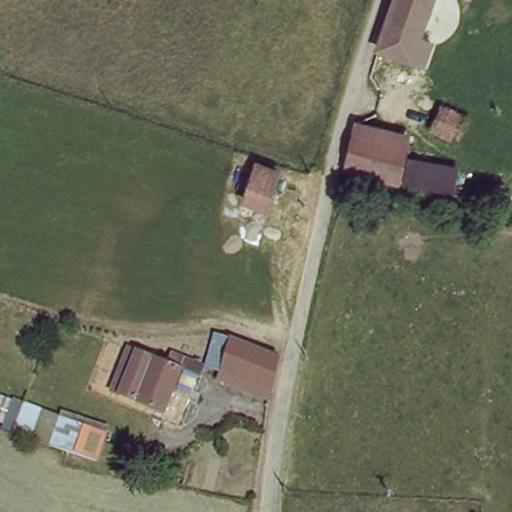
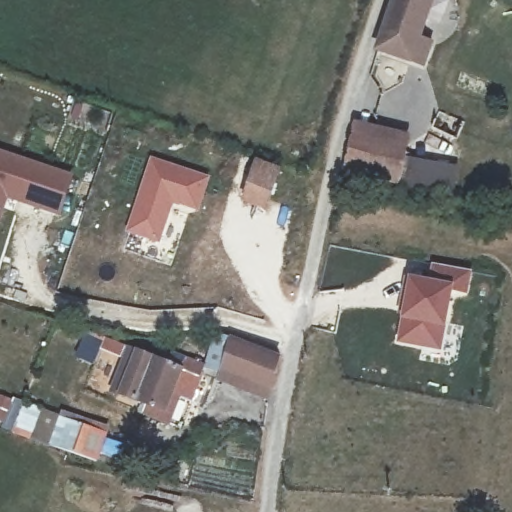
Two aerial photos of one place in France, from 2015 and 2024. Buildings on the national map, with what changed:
unchanged [(425,47),(419,67),(380,54),(396,0),(429,0),(414,42),(425,47)]
unchanged [(464,119),(457,141),(430,134),(435,112),(445,115),(464,119)]
unchanged [(355,139),(400,150),(394,184),(349,172),(355,139)]
new [(58,221),(3,206),(0,214),(0,157),(70,178),(58,221)]
new [(204,184),(194,221),(170,214),(160,251),(122,240),(147,167),(204,184)]
unchanged [(252,171),(278,180),(266,215),(242,208),(252,171)]
new [(428,286),(432,263),(474,271),(469,301),(447,297),(438,355),(394,348),(405,283),(428,286)]
unchanged [(233,346),(284,363),(280,378),(277,397),(221,378),(233,346)]
unchanged [(133,421),(108,412),(129,356),(154,365),(133,421)]
unchanged [(133,421),(154,365),(170,370),(172,365),(174,360),(186,363),(184,369),(161,432),(133,421)]
unchanged [(97,467),(52,450),(64,418),(106,434),(97,467)]

